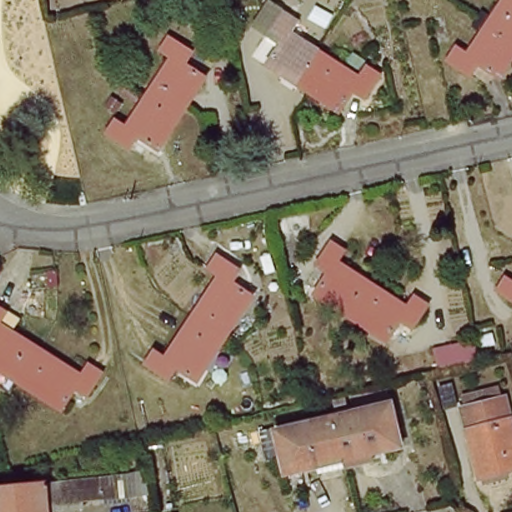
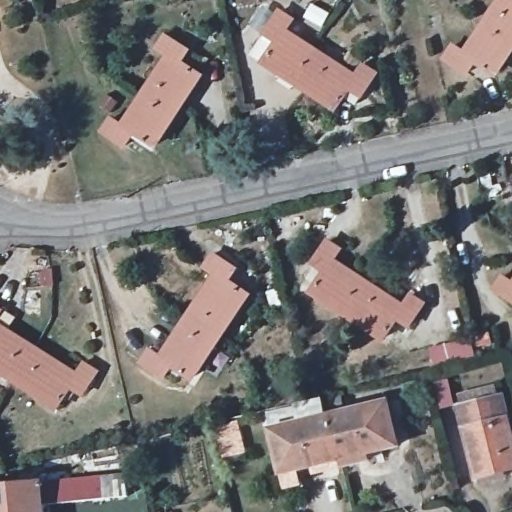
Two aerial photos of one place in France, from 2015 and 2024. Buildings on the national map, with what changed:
unchanged [(480,62),(473,73),(450,57),(460,44),(471,52),(506,0),(512,0),(512,56),(500,75),(480,62)]
unchanged [(302,20),(296,30),(360,76),(368,67),(379,76),(363,100),(351,91),(339,110),(270,61),(282,43),(272,36),(288,11),(302,20)]
unchanged [(188,52),(180,65),(195,77),(151,144),(132,134),(124,145),(101,130),(111,116),(122,123),(167,56),(155,49),(164,36),(188,52)]
unchanged [(344,249),(337,260),(407,305),(415,293),(428,302),(413,324),(402,317),(389,337),(317,288),(328,270),(317,262),(331,239),(344,249)]
unchanged [(239,267),(231,279),(251,294),(196,376),(175,362),(168,373),(146,358),(155,346),(166,353),(219,273),(207,265),(217,252),(239,267)]
unchanged [(505,275),(512,279),(512,297),(497,288),(505,275)]
unchanged [(79,376),(86,366),(98,375),(82,399),(70,391),(58,408),(0,371),(0,326),(79,376)]
unchanged [(481,471),(463,403),(506,392),(512,414),(512,462),(481,471)]
unchanged [(387,399),(397,443),(338,458),(326,413),(387,399)]
unchanged [(338,458),(285,472),(274,427),(326,413),(338,458)]
unchanged [(110,470),(115,496),(51,505),(52,512),(0,512),(0,486),(110,470)]

